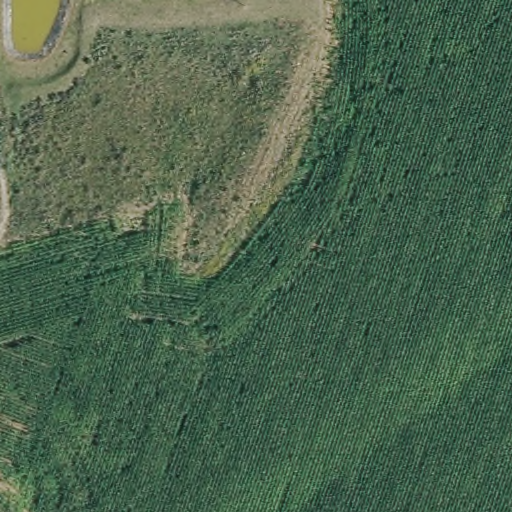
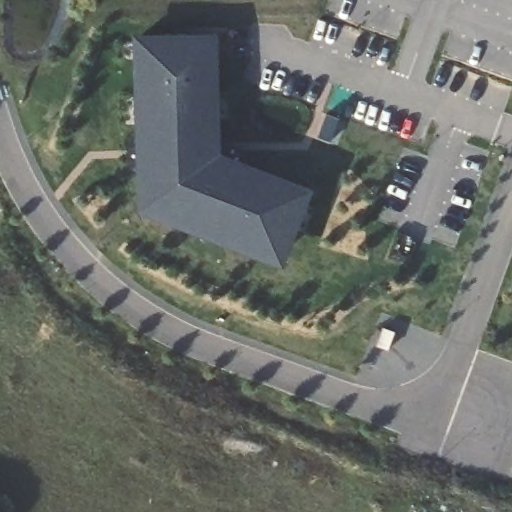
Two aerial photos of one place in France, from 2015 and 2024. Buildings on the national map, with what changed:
new [(219,39),(220,159),(313,198),(282,272),(138,221),(133,44),(219,39)]

